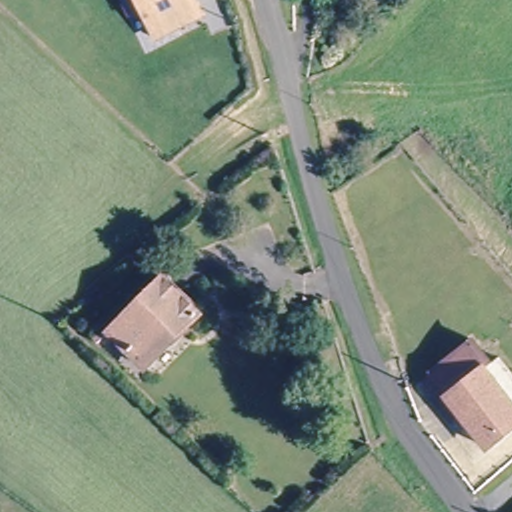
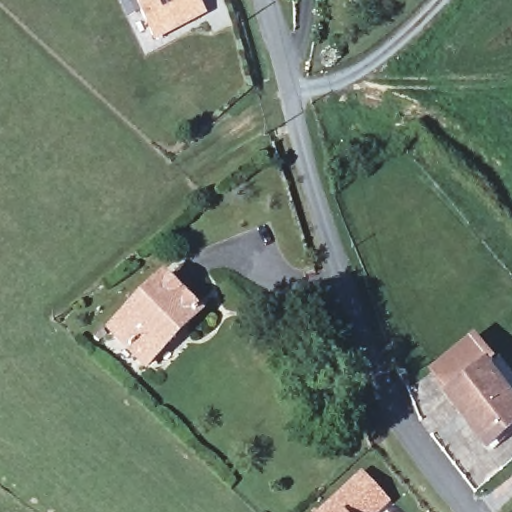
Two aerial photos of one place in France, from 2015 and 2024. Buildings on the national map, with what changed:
unchanged [(152,38),(134,0),(188,0),(196,16),(152,38)]
unchanged [(109,339),(159,286),(195,320),(144,373),(109,339)]
unchanged [(428,376),(467,340),(487,366),(483,369),(512,406),(512,424),(484,446),(428,376)]
new [(361,473),(391,503),(380,512),(318,512),(361,473)]

